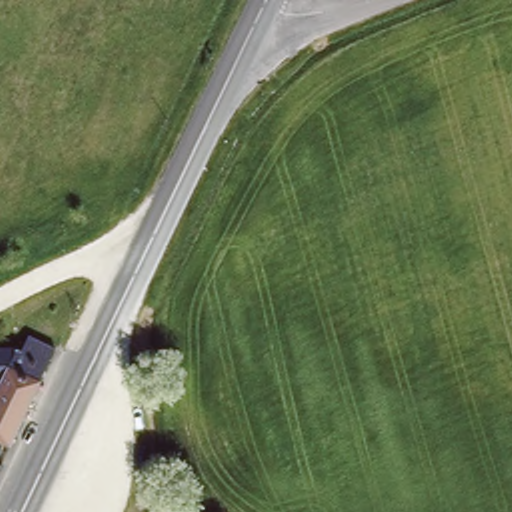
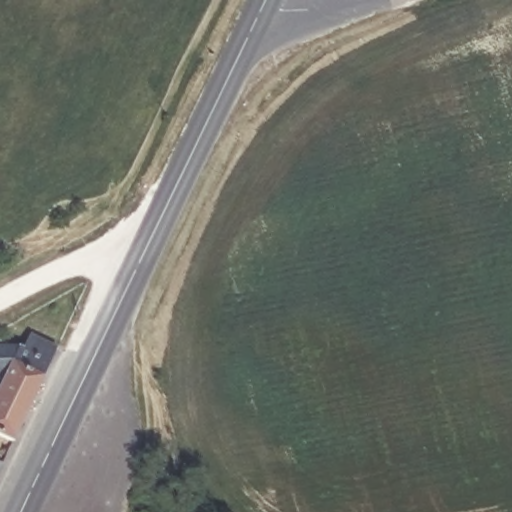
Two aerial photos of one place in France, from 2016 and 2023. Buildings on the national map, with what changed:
unchanged [(16,343),(33,349),(37,340),(56,348),(13,439),(0,433),(0,343),(16,343)]
unchanged [(3,465),(0,473),(0,464),(3,465)]

